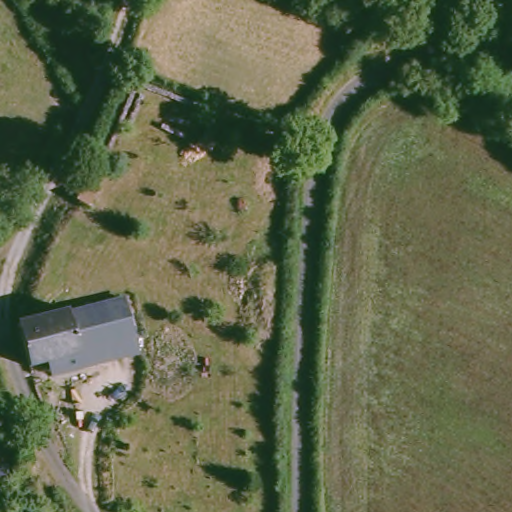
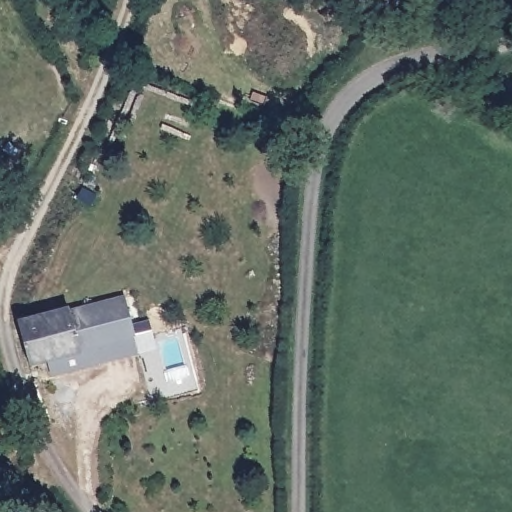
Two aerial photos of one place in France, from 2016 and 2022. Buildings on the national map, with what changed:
unchanged [(54,355),(35,360),(22,317),(71,303),(72,306),(125,291),(136,330),(82,345),(83,347),(54,355)]
unchanged [(140,347),(58,369),(54,355),(83,347),(82,345),(136,330),(140,347)]

